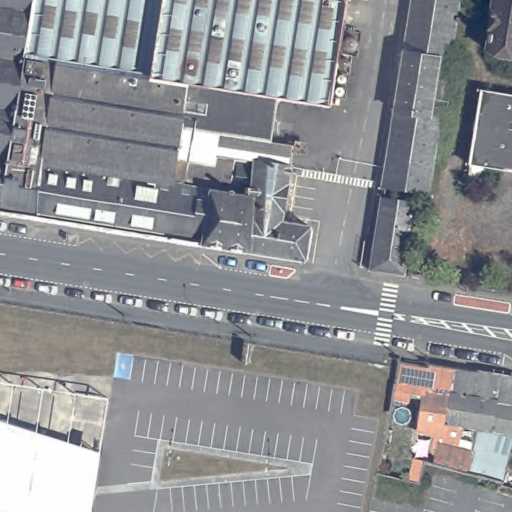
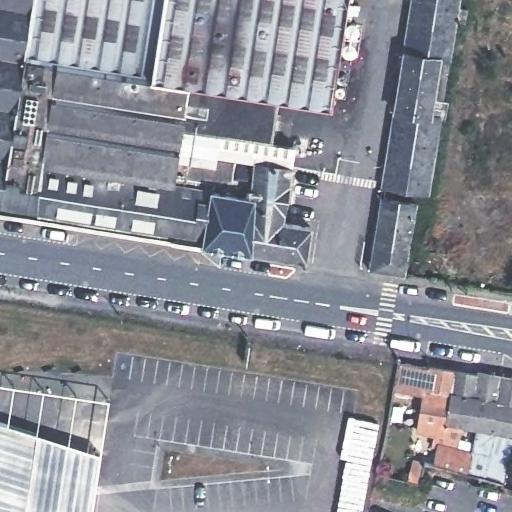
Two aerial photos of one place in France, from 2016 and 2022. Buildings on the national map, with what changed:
unchanged [(281,222),(311,227),(306,261),(0,212),(0,0),(346,0),(330,106),(277,99),(271,141),(295,145),(291,167),(281,222)]
unchanged [(416,0),(462,0),(461,6),(472,8),(469,22),(459,20),(453,62),(445,116),(432,194),(387,187),(416,0)]
demolished [(491,55),(495,33),(494,33),(499,0),(512,0),(512,58),(491,55)]
demolished [(491,167),(475,164),(487,90),(512,94),(512,170),(491,167)]
unchanged [(421,204),(410,275),(375,270),(385,199),(421,204)]
unchanged [(473,478),(429,467),(433,447),(435,439),(415,434),(419,399),(394,394),(400,365),(423,369),(424,367),(450,371),(473,375),(512,382),(512,439),(505,464),(498,485),(473,478)]
unchanged [(91,512),(0,512),(0,381),(109,399),(91,512)]
unchanged [(418,485),(412,484),(413,479),(419,481),(418,485)]

